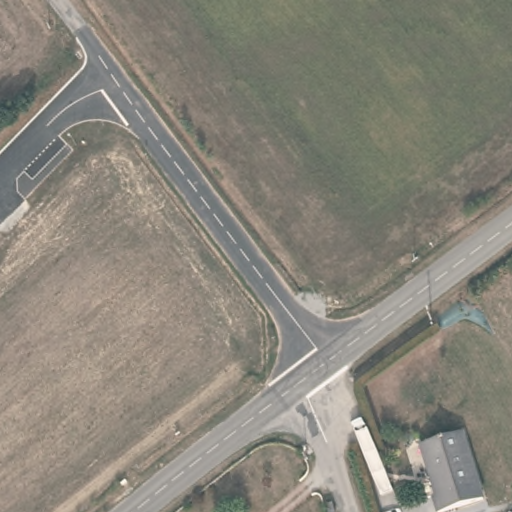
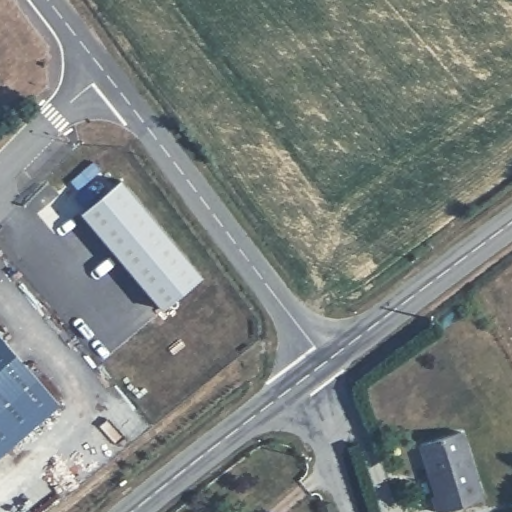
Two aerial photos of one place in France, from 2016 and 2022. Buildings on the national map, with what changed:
new [(81,214),(121,180),(204,277),(164,311),(81,214)]
new [(0,457),(0,334),(60,405),(0,457)]
unchanged [(480,495),(436,508),(431,492),(437,491),(431,473),(429,474),(419,441),(460,428),(480,495)]
unchanged [(330,499),(334,511),(331,512),(328,512),(324,500),(330,499)]

